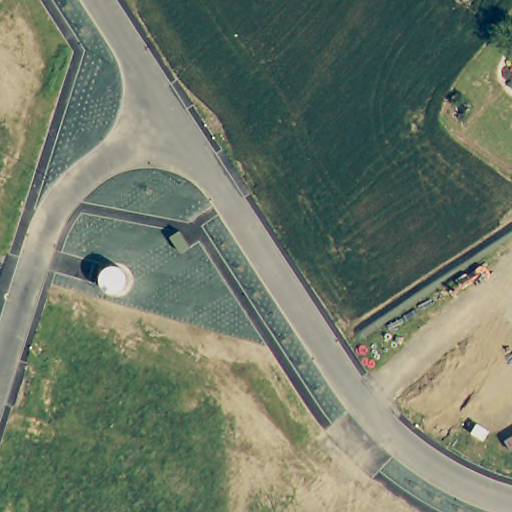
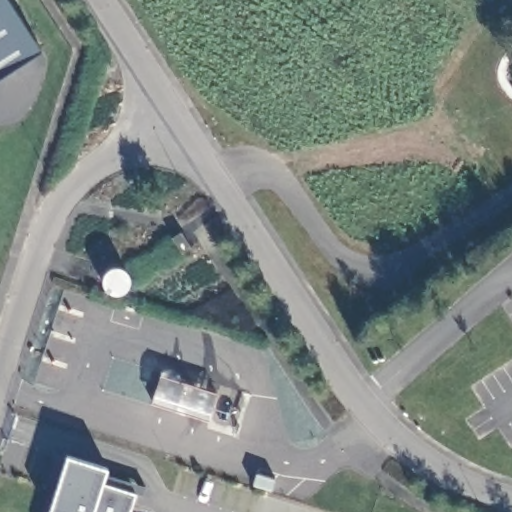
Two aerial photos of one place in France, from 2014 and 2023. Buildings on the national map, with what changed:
new [(0,76),(0,0),(8,0),(40,50),(0,76)]
new [(64,453),(107,467),(105,475),(146,487),(144,496),(136,493),(131,512),(46,512),(64,453)]

